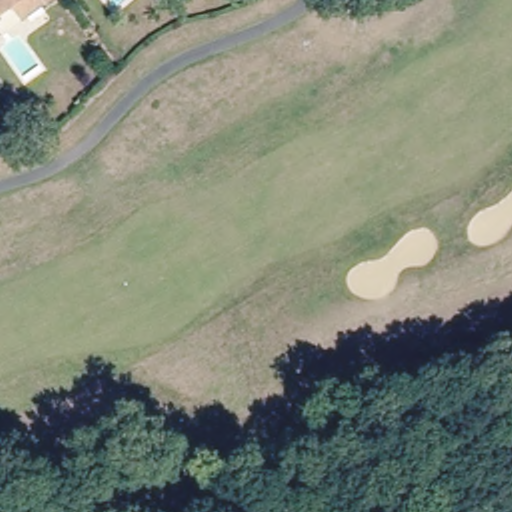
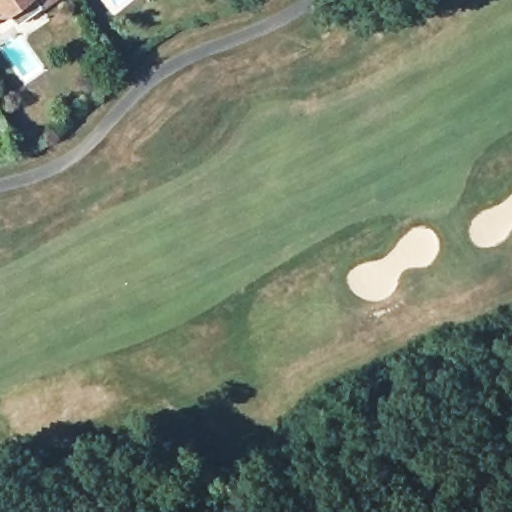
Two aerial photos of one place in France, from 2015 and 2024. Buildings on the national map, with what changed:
unchanged [(20,6),(0,21),(0,0),(55,0),(47,6),(29,18),(20,6)]

